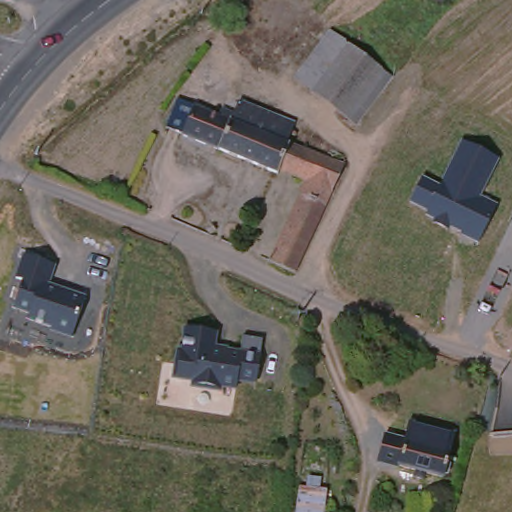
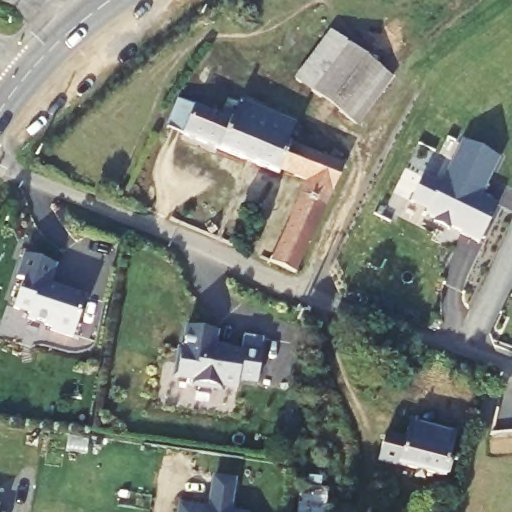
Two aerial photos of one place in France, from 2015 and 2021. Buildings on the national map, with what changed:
unchanged [(411,89),(371,138),(289,79),(330,28),(411,89)]
unchanged [(227,119),(238,94),(298,120),(290,141),(227,119)]
unchanged [(280,165),(278,171),(164,127),(175,102),(207,113),(227,119),(290,141),(280,165)]
unchanged [(272,264),(306,173),(280,165),(290,141),(345,160),(300,275),(272,264)]
unchanged [(478,242),(460,234),(460,231),(425,215),(428,209),(410,202),(422,176),(439,185),(461,141),(500,159),(480,198),(498,207),(478,242)]
unchanged [(73,337),(51,330),(52,326),(27,319),(29,313),(15,308),(24,281),(16,278),(24,253),(57,263),(50,285),(87,297),(73,337)]
unchanged [(253,385),(237,383),(235,392),(190,387),(190,380),(172,378),(175,351),(180,351),(183,329),(211,333),(210,348),(240,350),(240,336),(262,338),(253,385)]
unchanged [(401,465),(410,425),(456,436),(446,477),(401,465)]
new [(206,506),(213,507),(215,492),(218,473),(238,477),(235,495),(233,510),(251,512),(183,512),(185,501),(207,503),(206,506)]
unchanged [(325,512),(290,512),(291,486),(327,489),(325,512)]

